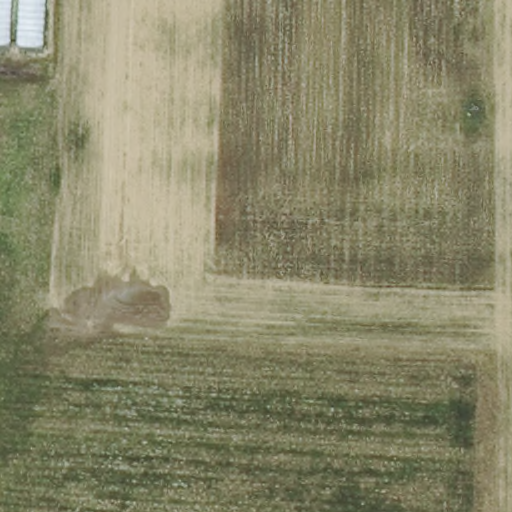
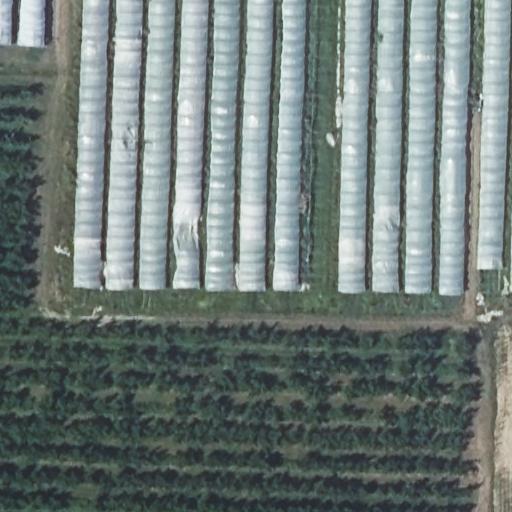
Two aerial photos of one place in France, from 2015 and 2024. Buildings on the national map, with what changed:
new [(43,46),(0,44),(0,0),(45,0),(43,46)]
new [(299,295),(77,290),(86,0),(512,0),(512,299),(299,295)]

